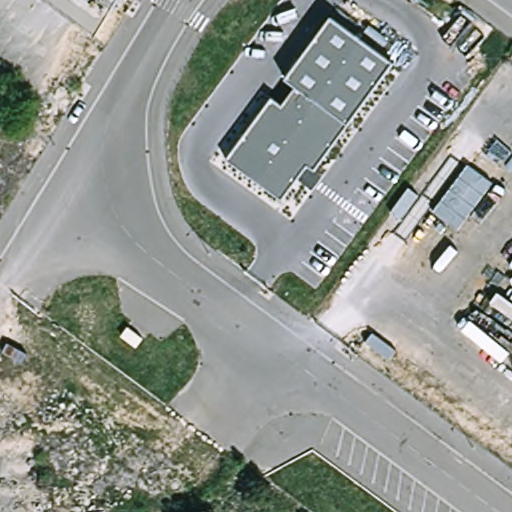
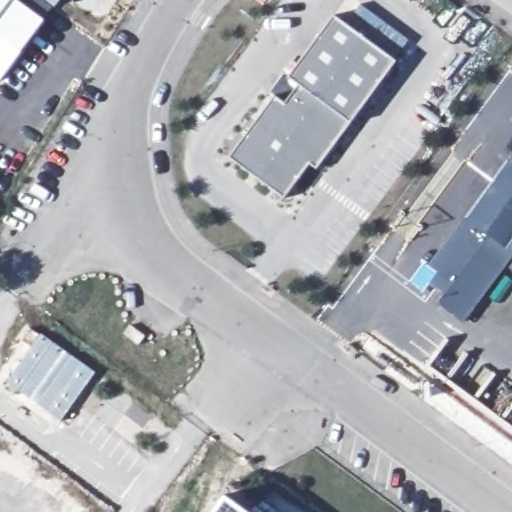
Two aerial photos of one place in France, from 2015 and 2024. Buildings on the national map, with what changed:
new [(0,84),(0,0),(17,0),(45,21),(0,84)]
unchanged [(287,86),(298,94),(311,76),(300,69),(346,6),(410,53),(330,160),(323,155),(297,190),(241,149),(287,86)]
new [(464,219),(512,157),(512,257),(464,219)]
new [(512,257),(463,322),(439,304),(446,294),(421,274),(464,219),(512,257)]
new [(61,422),(7,383),(31,346),(23,340),(31,329),(95,373),(61,422)]
new [(248,512),(211,512),(224,494),(248,512)]

